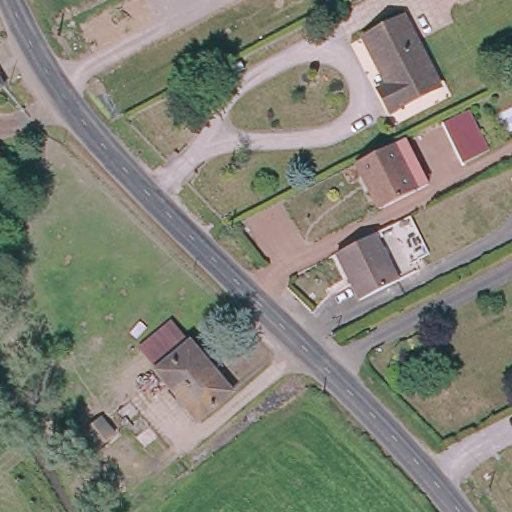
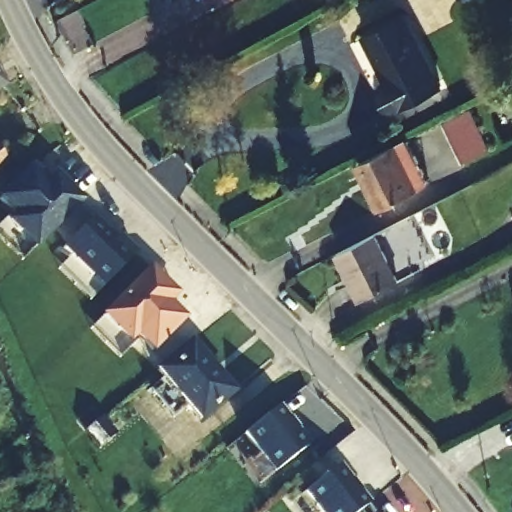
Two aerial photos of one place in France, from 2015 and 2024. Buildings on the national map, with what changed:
unchanged [(465,0),(459,4),(457,0),(465,0)]
unchanged [(405,19),(441,89),(388,116),(376,93),(386,89),(364,40),(405,19)]
unchanged [(0,95),(0,84),(4,92),(0,95)]
new [(471,111),(491,151),(464,164),(444,125),(471,111)]
unchanged [(395,144),(418,189),(381,208),(371,188),(376,185),(363,161),(395,144)]
unchanged [(0,165),(0,152),(6,159),(0,165)]
new [(15,214),(0,199),(0,197),(31,166),(51,187),(51,189),(55,193),(65,183),(81,200),(34,247),(8,221),(15,214)]
new [(55,193),(51,189),(51,187),(47,183),(55,174),(65,183),(55,193)]
new [(116,239),(120,235),(137,253),(90,300),(58,268),(64,262),(68,265),(73,260),(63,249),(94,218),(116,239)]
unchanged [(375,240),(399,285),(363,303),(340,258),(375,240)]
new [(129,341),(103,315),(151,268),(167,284),(176,293),(168,302),(164,298),(184,318),(153,350),(136,334),(129,341)]
unchanged [(191,346),(234,394),(201,424),(159,372),(191,346)]
new [(278,407),(287,419),(289,419),(298,429),(296,431),(308,447),(274,473),(244,433),(278,407)]
unchanged [(119,435),(104,448),(89,431),(105,418),(119,435)]
new [(338,466),(349,482),(351,481),(360,492),(359,493),(368,505),(359,512),(319,512),(304,492),(338,466)]

